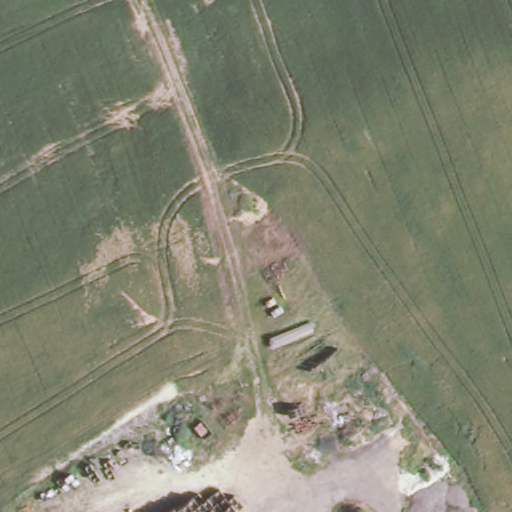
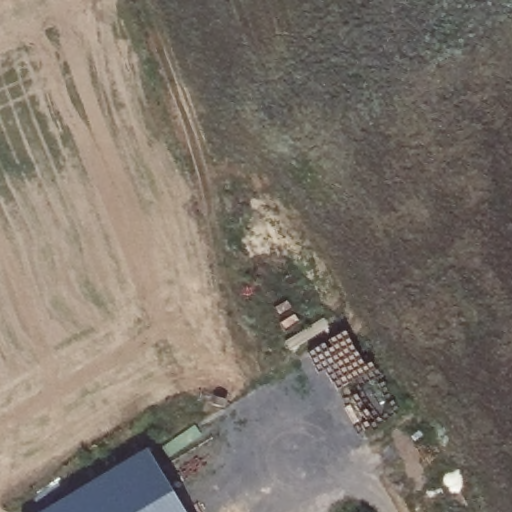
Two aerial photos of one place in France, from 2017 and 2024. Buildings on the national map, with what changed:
new [(145,445),(186,512),(32,512),(145,445)]

